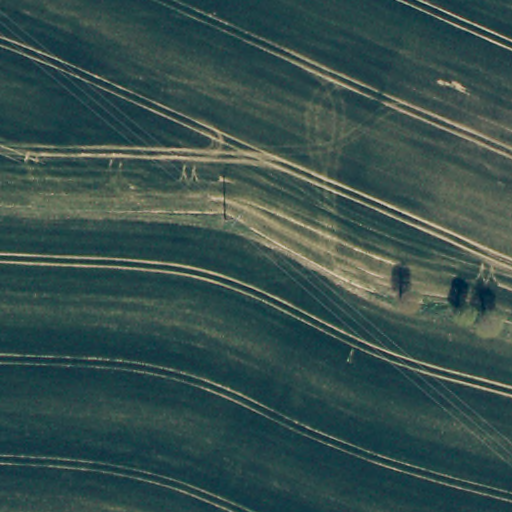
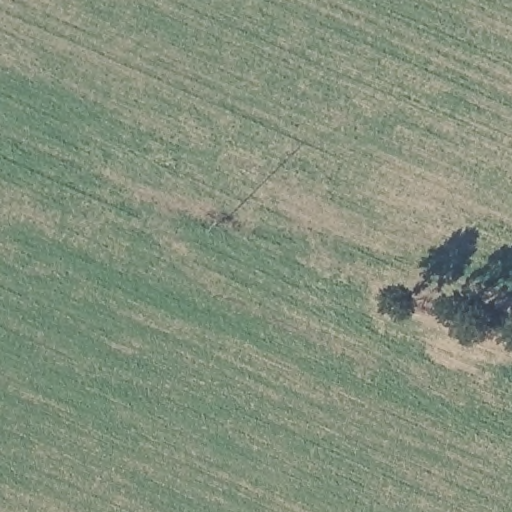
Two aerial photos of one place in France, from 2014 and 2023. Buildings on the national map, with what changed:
[]

